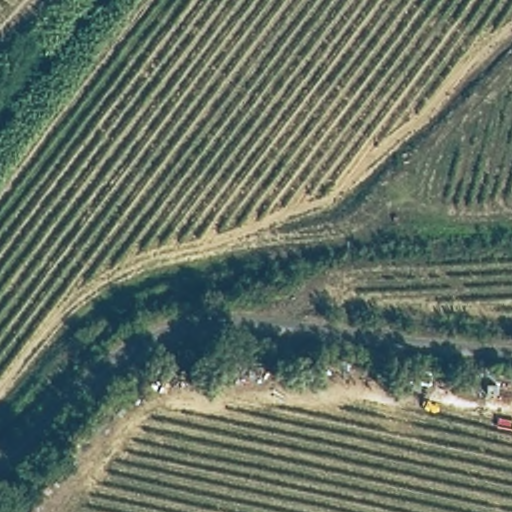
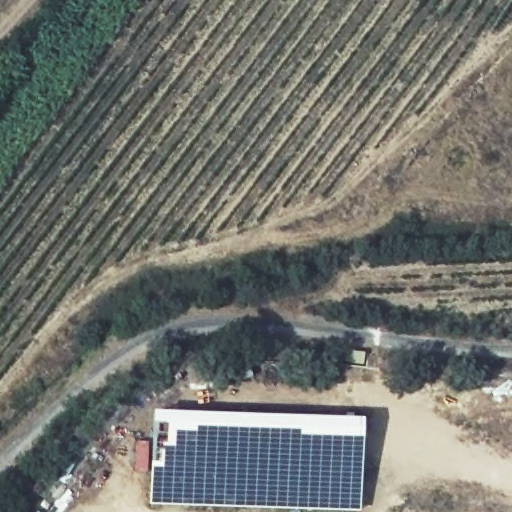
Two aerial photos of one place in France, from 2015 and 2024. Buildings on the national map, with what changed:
demolished [(467,376),(512,378),(512,396),(470,395),(467,376)]
new [(363,420),(360,512),(330,512),(148,506),(151,414),(363,420)]

